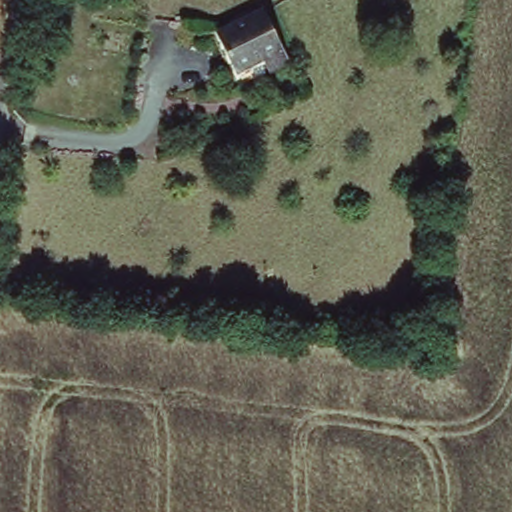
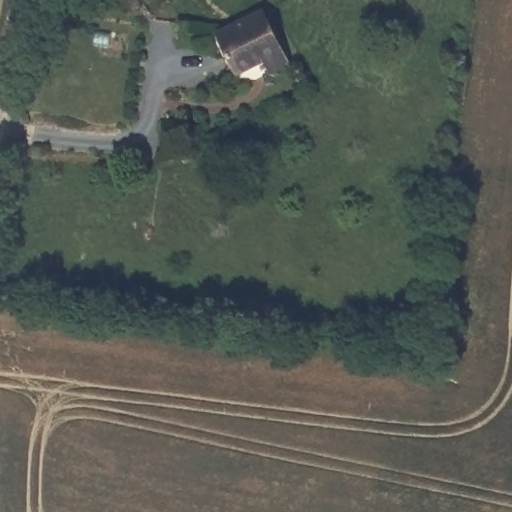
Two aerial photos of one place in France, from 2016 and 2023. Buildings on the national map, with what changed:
unchanged [(240,71),(215,21),(259,0),(260,0),(279,38),(284,50),(265,59),(240,71)]

